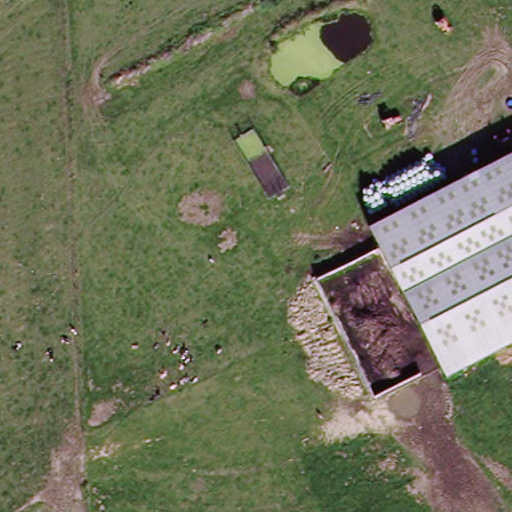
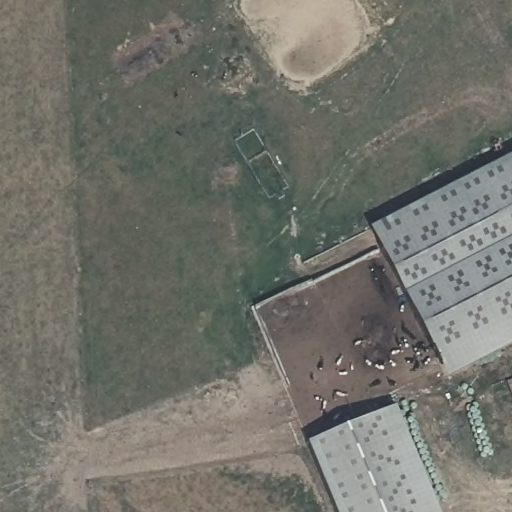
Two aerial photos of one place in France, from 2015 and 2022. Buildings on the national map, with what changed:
unchanged [(512,155),(512,345),(445,379),(368,229),(512,155)]
new [(393,405),(438,512),(334,512),(305,442),(393,405)]

